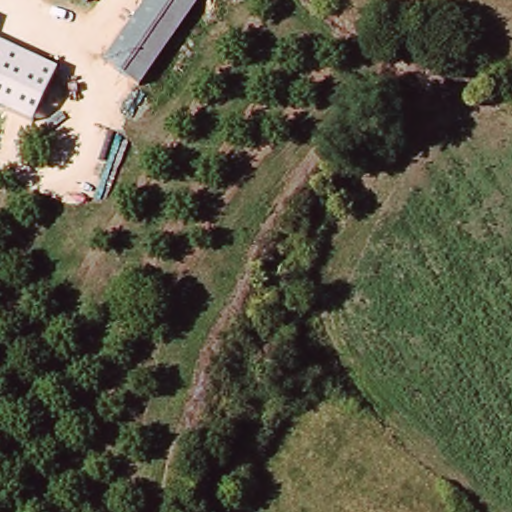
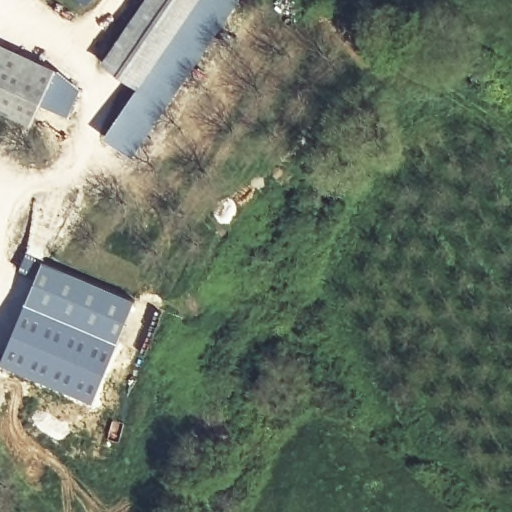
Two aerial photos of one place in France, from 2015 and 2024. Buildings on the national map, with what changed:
unchanged [(83,0),(85,0),(84,1),(83,0)]
unchanged [(102,63),(147,0),(190,0),(132,85),(102,63)]
unchanged [(35,123),(0,108),(0,44),(57,70),(35,123)]
new [(135,299),(92,401),(0,363),(0,359),(41,259),(135,299)]

